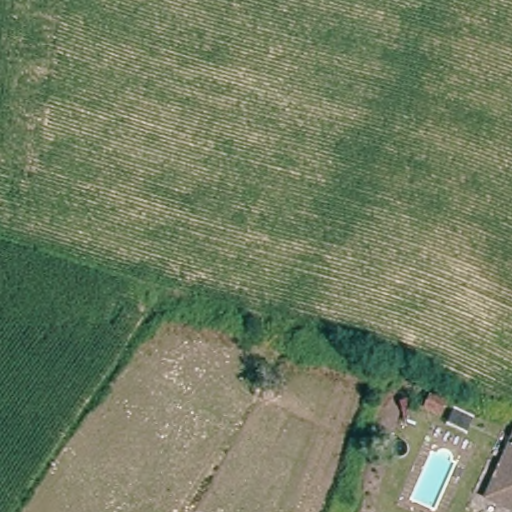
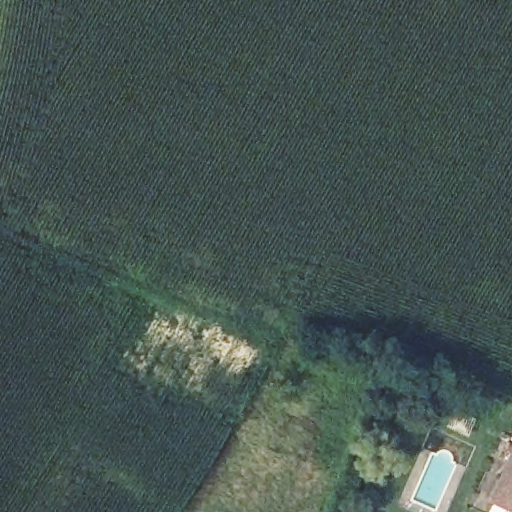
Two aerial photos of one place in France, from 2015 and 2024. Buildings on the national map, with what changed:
unchanged [(512,459),(512,504),(497,497),(512,459)]

